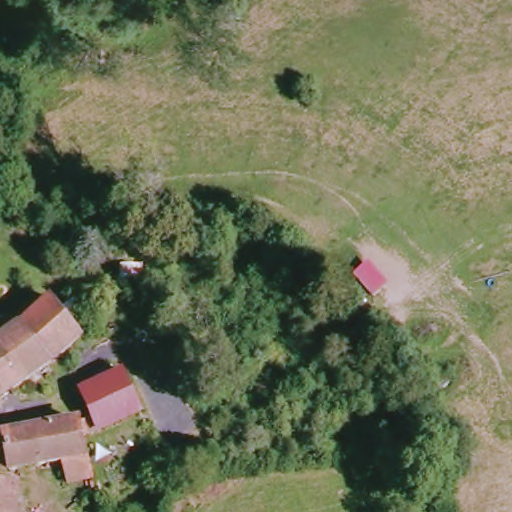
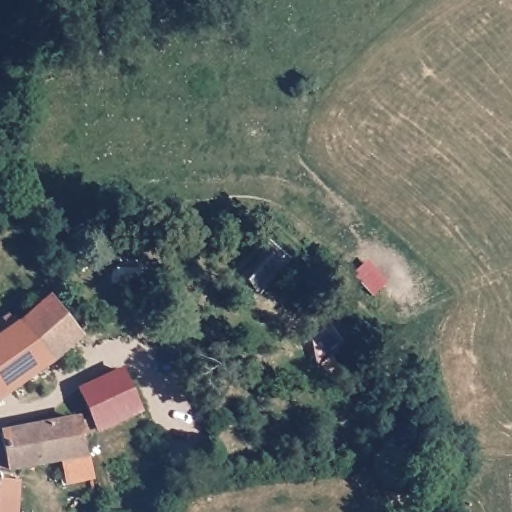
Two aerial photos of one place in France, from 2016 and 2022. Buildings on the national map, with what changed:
unchanged [(24,330),(58,300),(68,313),(79,302),(100,330),(88,340),(28,384),(0,406),(0,325),(11,316),(24,330)]
unchanged [(70,463),(11,475),(6,450),(18,445),(16,433),(76,415),(93,410),(88,392),(119,381),(136,375),(154,414),(99,430),(83,432),(95,477),(70,479),(70,463)]
unchanged [(20,512),(0,512),(0,489),(19,489),(20,512)]

